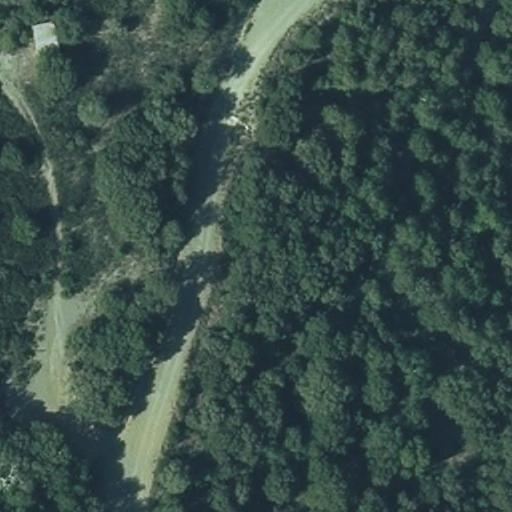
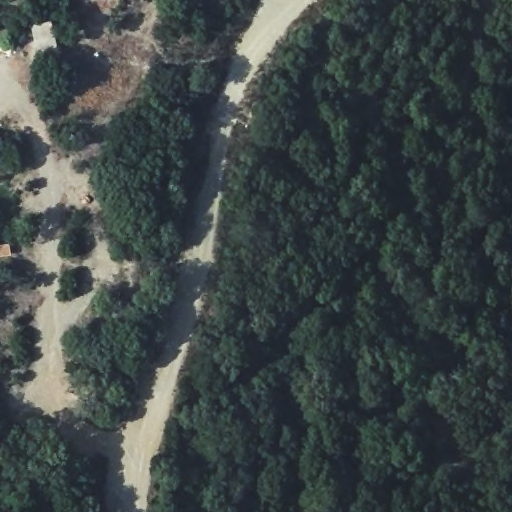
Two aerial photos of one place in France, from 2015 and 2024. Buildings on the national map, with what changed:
unchanged [(60,48),(36,53),(27,23),(52,18),(60,48)]

